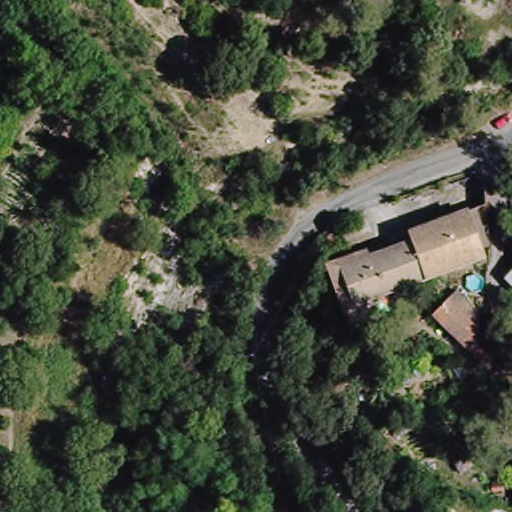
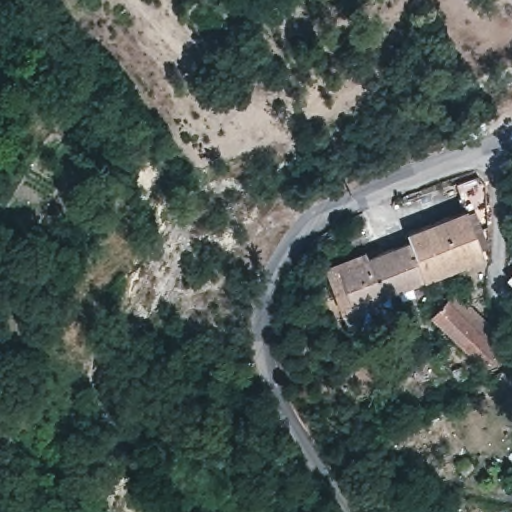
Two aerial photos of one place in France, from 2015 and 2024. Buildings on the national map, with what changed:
unchanged [(365,250),(366,252),(413,235),(410,228),(459,210),(463,208),(481,255),(379,293),(384,307),(346,322),(344,319),(332,287),(324,265),(365,250)]
unchanged [(499,350),(478,372),(426,319),(447,298),(499,350)]
unchanged [(466,466),(472,477),(461,482),(456,473),(466,466)]

